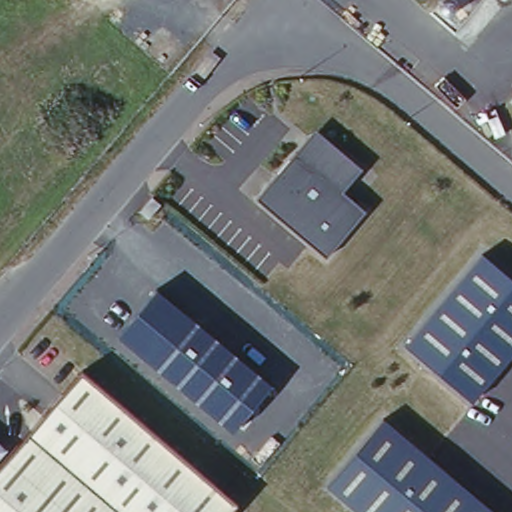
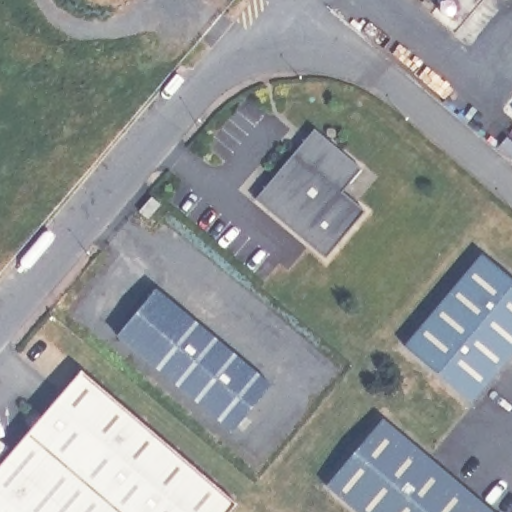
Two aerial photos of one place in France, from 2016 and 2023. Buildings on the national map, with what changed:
unchanged [(326,257),(257,197),(311,130),(360,169),(340,192),(363,211),(326,257)]
unchanged [(473,401),(407,343),(481,254),(512,280),(512,354),(473,401)]
unchanged [(232,432),(118,335),(156,290),(270,384),(232,432)]
unchanged [(231,497),(219,512),(0,512),(0,456),(78,365),(231,497)]
unchanged [(327,484),(382,418),(494,512),(360,512),(327,484)]

